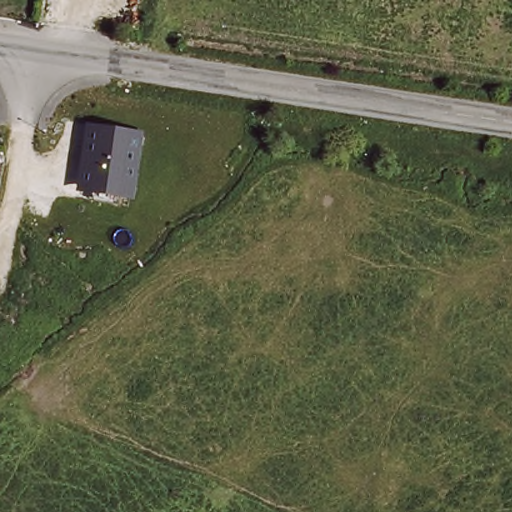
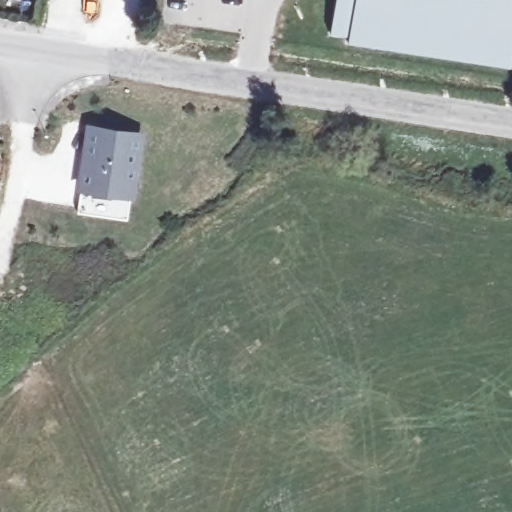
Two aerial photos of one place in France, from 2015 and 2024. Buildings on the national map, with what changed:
new [(512,58),(510,67),(348,44),(348,38),(330,35),(336,0),(512,0),(512,58)]
unchanged [(143,135),(135,196),(85,189),(93,129),(143,135)]

